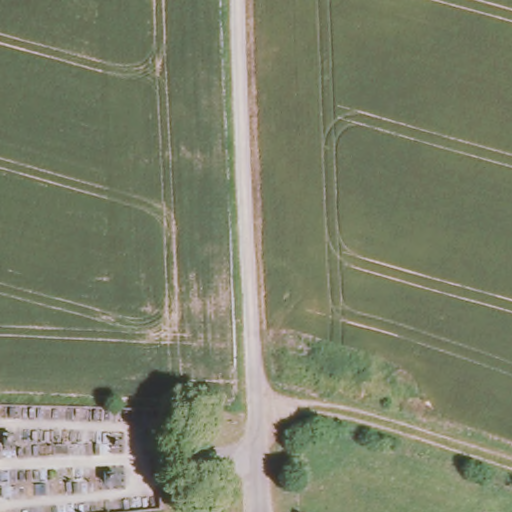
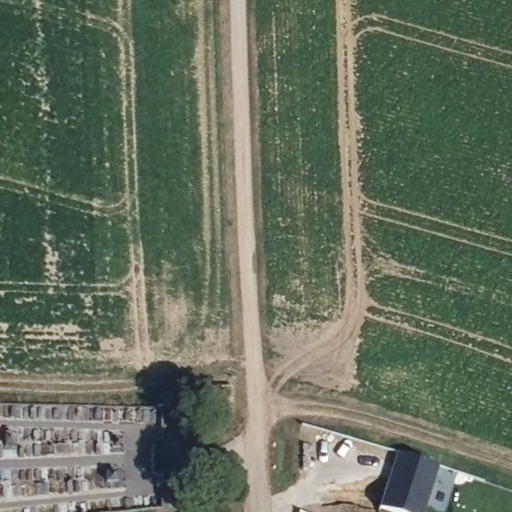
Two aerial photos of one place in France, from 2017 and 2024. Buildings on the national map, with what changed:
new [(440,467),(425,512),(394,512),(380,507),(390,481),(392,482),(396,472),(393,471),(400,453),(440,467)]

